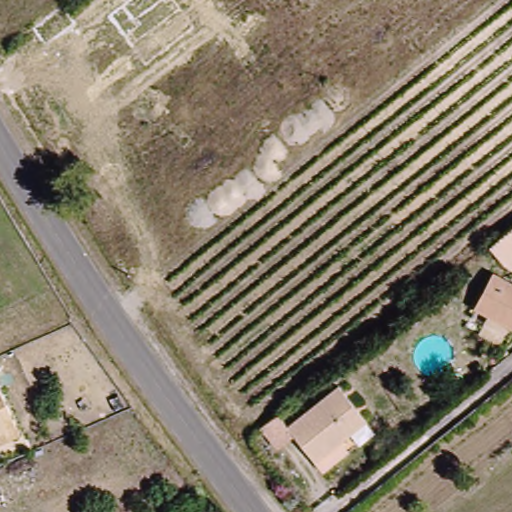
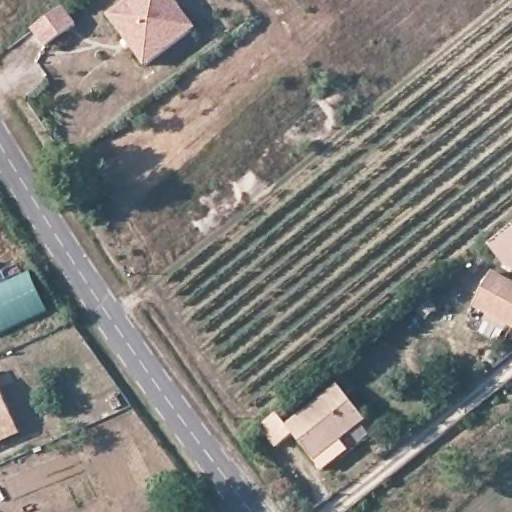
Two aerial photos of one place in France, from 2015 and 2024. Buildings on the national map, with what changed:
new [(109,17),(131,0),(174,0),(197,30),(147,66),(109,17)]
new [(64,7),(74,22),(42,46),(31,32),(64,7)]
unchanged [(512,232),(512,269),(494,247),(512,232)]
new [(0,333),(0,288),(30,274),(48,311),(0,333)]
unchanged [(472,310),(491,275),(512,288),(512,336),(472,310)]
unchanged [(20,427),(0,434),(0,384),(20,427)]
unchanged [(291,432),(340,390),(369,425),(318,465),(297,441),(281,451),(267,435),(281,422),(291,432)]
unchanged [(24,437),(0,447),(0,434),(20,427),(24,437)]

